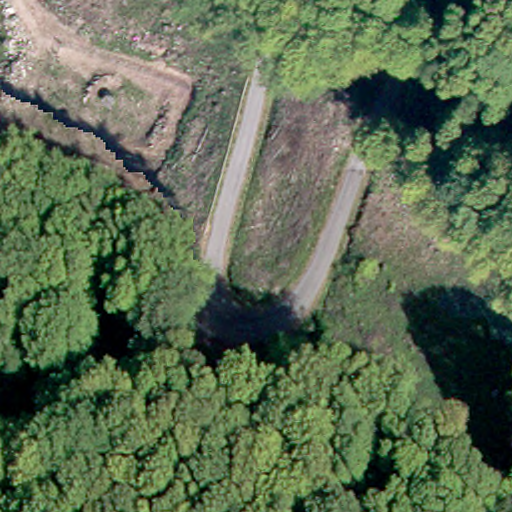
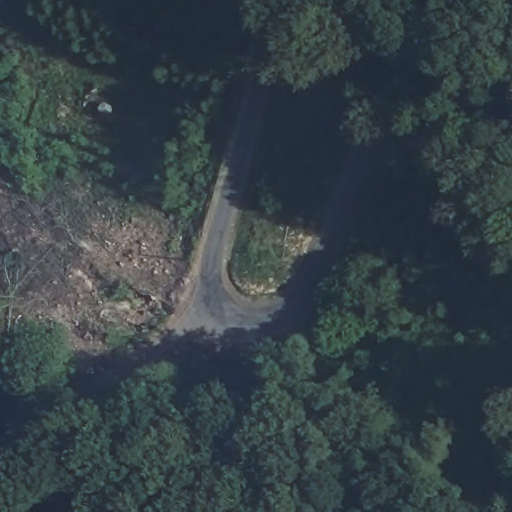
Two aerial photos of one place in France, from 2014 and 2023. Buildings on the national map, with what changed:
unchanged [(98,104),(100,102),(103,101),(106,101),(109,103),(110,106),(110,109),(107,112),(105,113),(101,113),(98,111),(97,108),(98,104)]

